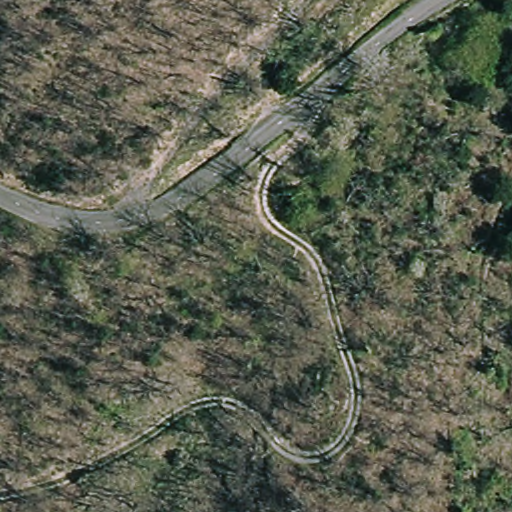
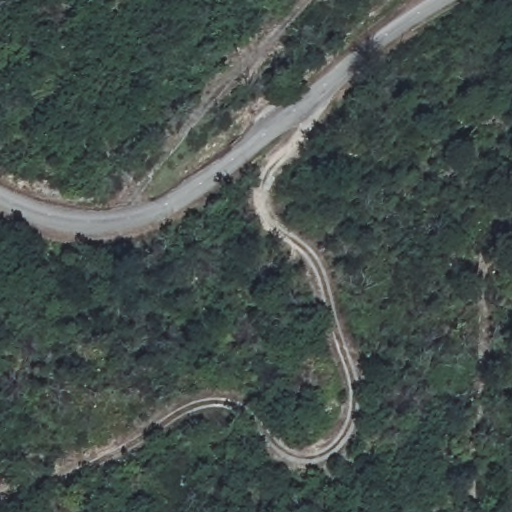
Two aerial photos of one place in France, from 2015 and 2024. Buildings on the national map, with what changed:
[]

